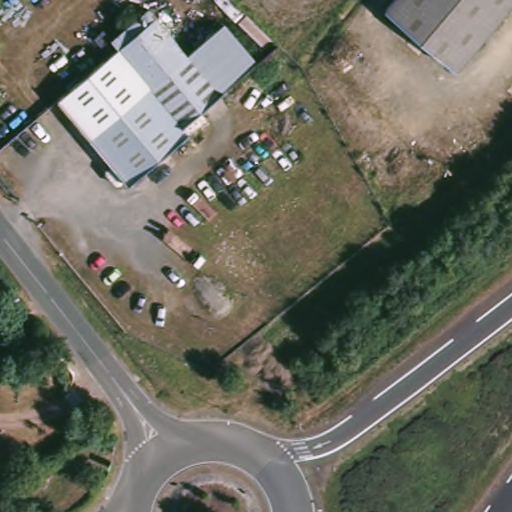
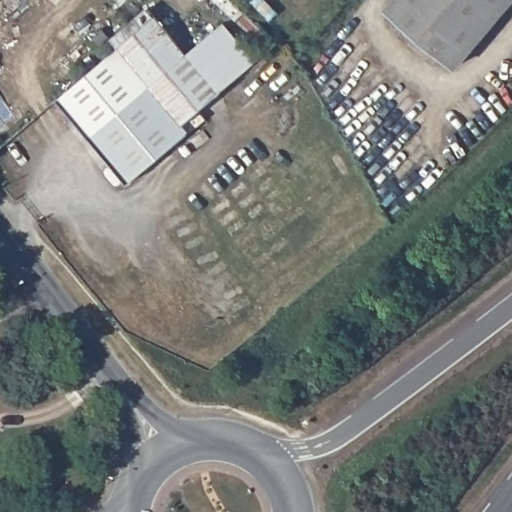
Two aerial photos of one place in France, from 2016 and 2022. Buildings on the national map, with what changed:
unchanged [(382,6),(388,0),(512,0),(512,3),(456,69),(382,6)]
unchanged [(148,84),(87,133),(56,94),(116,45),(110,37),(146,7),(185,54),(216,92),(179,122),(148,84)]
unchanged [(185,54),(219,25),(251,64),(216,92),(185,54)]
unchanged [(186,130),(125,180),(87,133),(148,84),(179,122),(186,130)]

